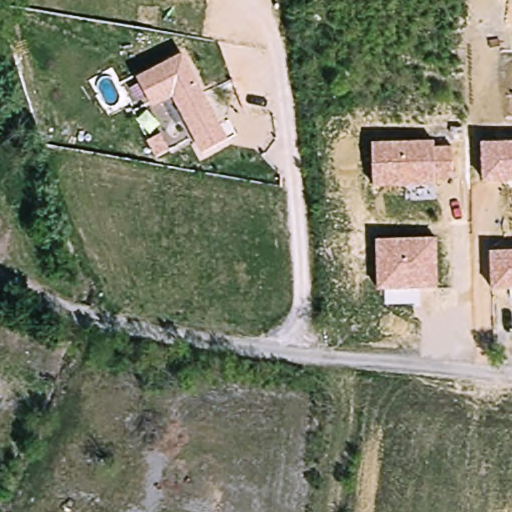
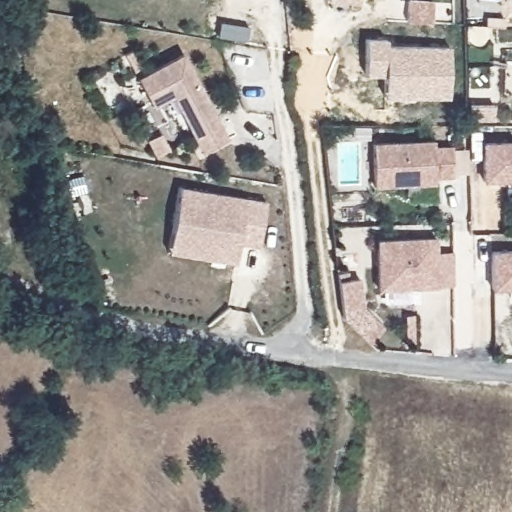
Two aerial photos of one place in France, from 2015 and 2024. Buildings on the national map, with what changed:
new [(327,1),(328,0),(359,0),(358,5),(327,1)]
new [(386,40),(387,47),(448,48),(448,98),(384,97),(383,76),(365,75),(364,40),(386,40)]
unchanged [(172,96),(150,108),(135,79),(181,55),(226,140),(202,154),(172,96)]
unchanged [(435,141),(435,148),(452,147),(453,180),(436,179),(436,186),(373,185),(373,143),(435,141)]
unchanged [(512,142),(512,180),(483,181),(482,143),(512,142)]
new [(267,202),(258,249),(240,245),(236,265),(167,253),(178,186),(247,198),(267,202)]
unchanged [(437,238),(440,289),(377,290),(377,240),(437,238)]
unchanged [(512,251),(512,288),(492,288),(492,252),(512,251)]
new [(376,349),(349,327),(348,321),(343,284),(350,283),(352,290),(364,289),(367,318),(388,336),(376,349)]

